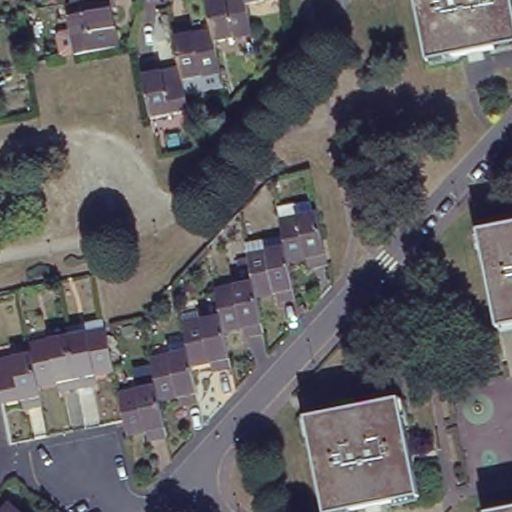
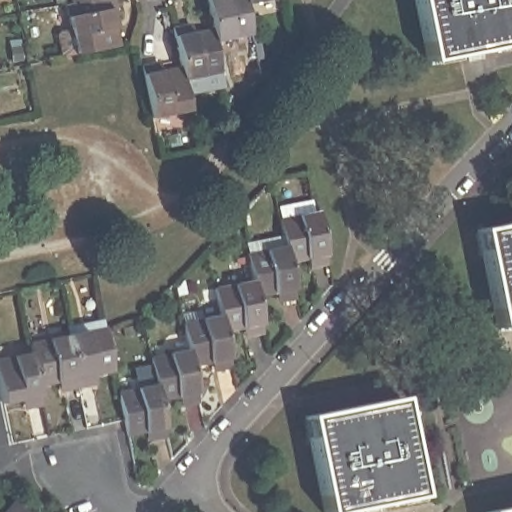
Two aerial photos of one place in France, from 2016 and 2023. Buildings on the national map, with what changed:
unchanged [(116,8),(111,9),(119,46),(76,55),(76,54),(64,56),(61,54),(56,36),(59,32),(70,30),(68,17),(66,4),(71,3),(70,0),(115,0),(116,8)]
unchanged [(140,61),(154,57),(156,67),(180,62),(172,22),(186,20),(188,29),(211,24),(206,0),(246,0),(252,30),(214,37),(223,83),(186,90),(189,106),(151,113),(140,61)]
unchanged [(415,0),(512,0),(512,45),(428,62),(415,0)]
unchanged [(123,387),(161,380),(156,353),(193,345),(187,318),(188,318),(186,309),(205,305),(207,314),(225,311),(220,283),(258,276),(252,249),(250,238),(287,231),(284,214),(285,214),(283,202),(317,196),(319,207),(322,207),(332,260),(314,263),(312,254),(293,258),(300,294),(286,297),(285,288),(261,293),(268,329),(254,332),(252,322),(228,327),(236,363),(222,366),(220,357),(196,362),(204,398),(190,401),(188,391),(164,396),(171,433),(157,436),(155,427),(131,431),(123,387)]
unchanged [(478,231),(512,224),(512,325),(498,328),(478,231)]
unchanged [(35,343),(33,338),(71,330),(71,329),(109,321),(110,328),(119,371),(95,376),(97,386),(69,391),(66,382),(43,387),(48,406),(33,409),(31,399),(8,404),(0,366),(0,360),(36,353),(35,343)]
unchanged [(399,399),(419,496),(343,512),(325,512),(305,418),(399,399)]
unchanged [(20,512),(4,512),(11,504),(20,512)]
unchanged [(494,512),(512,508),(512,512),(494,512)]

